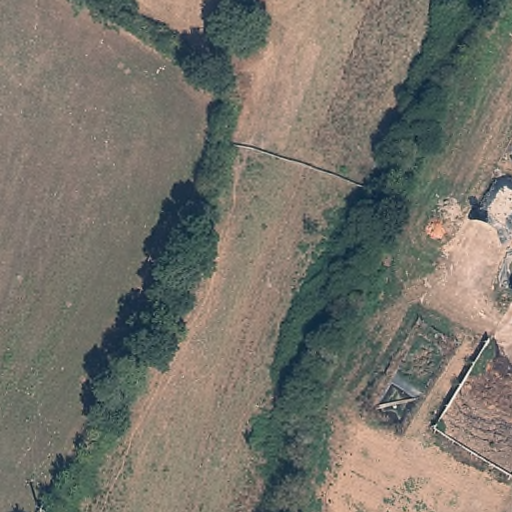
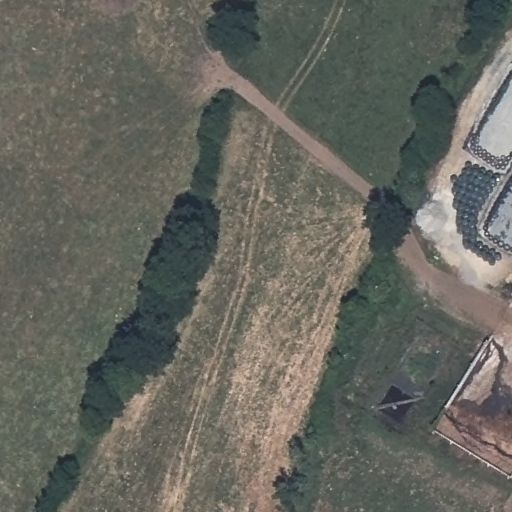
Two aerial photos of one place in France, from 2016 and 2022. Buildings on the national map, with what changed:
[]

